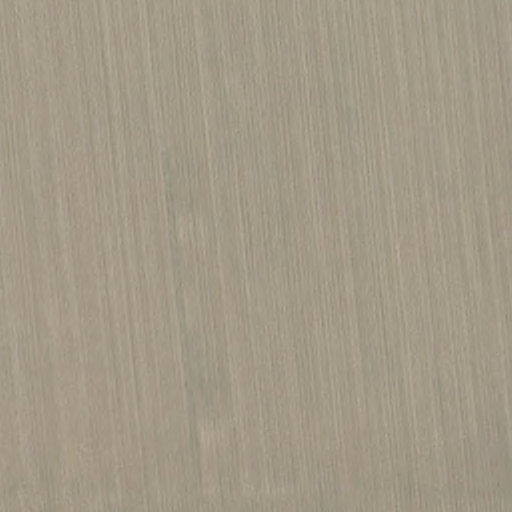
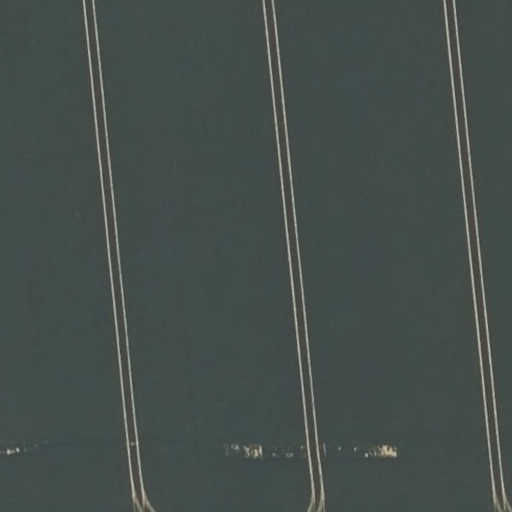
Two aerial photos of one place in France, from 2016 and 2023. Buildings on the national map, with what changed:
[]

